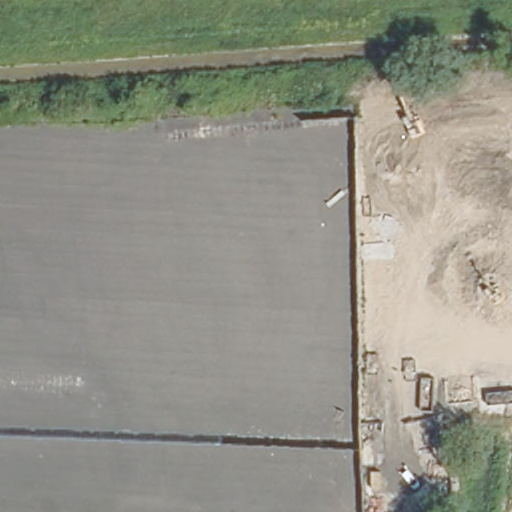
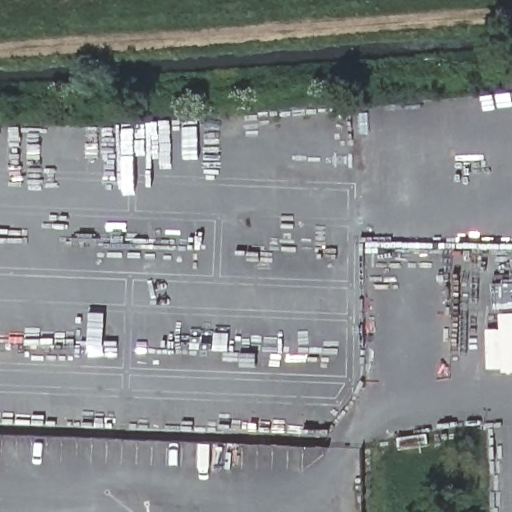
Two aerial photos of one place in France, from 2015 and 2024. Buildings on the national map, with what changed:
new [(486,330),(499,329),(499,315),(512,314),(512,372),(486,372),(486,330)]

